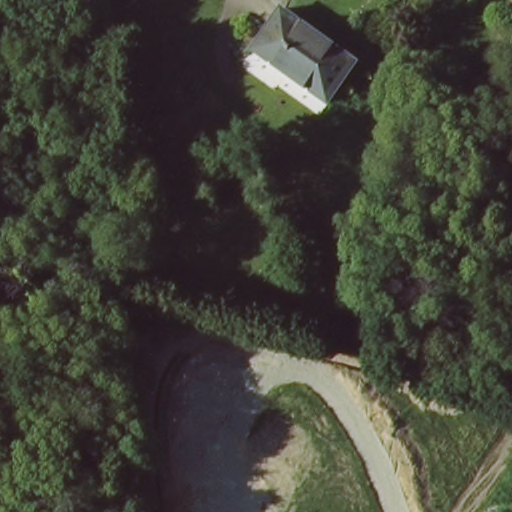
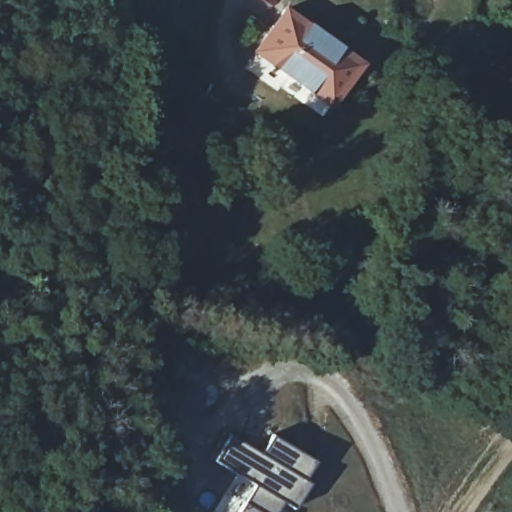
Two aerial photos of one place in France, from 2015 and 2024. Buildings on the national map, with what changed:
unchanged [(318,30),(359,58),(330,102),(254,50),(266,31),(283,7),(318,30)]
new [(263,459),(272,441),(314,464),(305,481),(310,484),(296,509),(286,504),(282,512),(244,512),(256,489),(217,468),(231,442),(263,459)]

